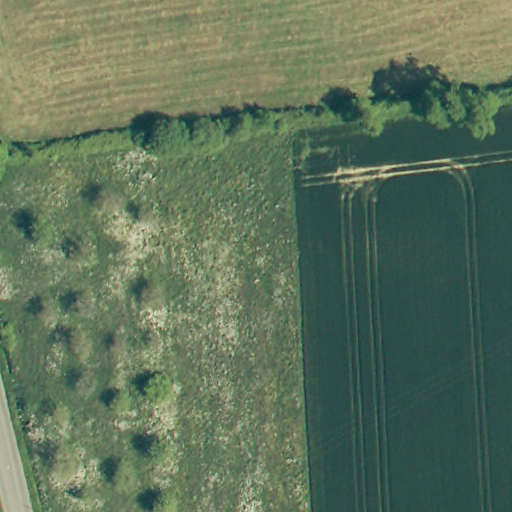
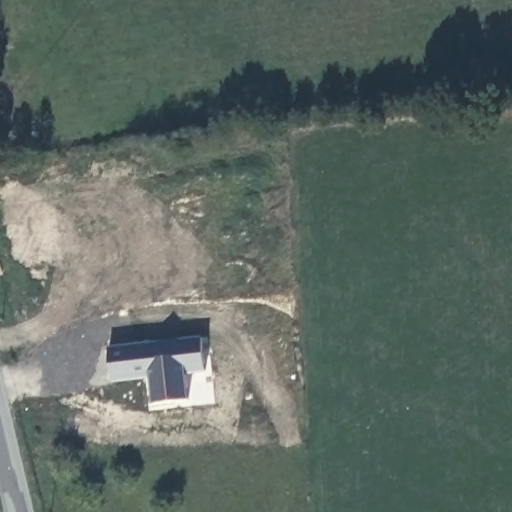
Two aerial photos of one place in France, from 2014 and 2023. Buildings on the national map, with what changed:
new [(111,382),(108,350),(200,339),(204,376),(186,378),(189,404),(152,408),(149,383),(112,387),(111,382)]

